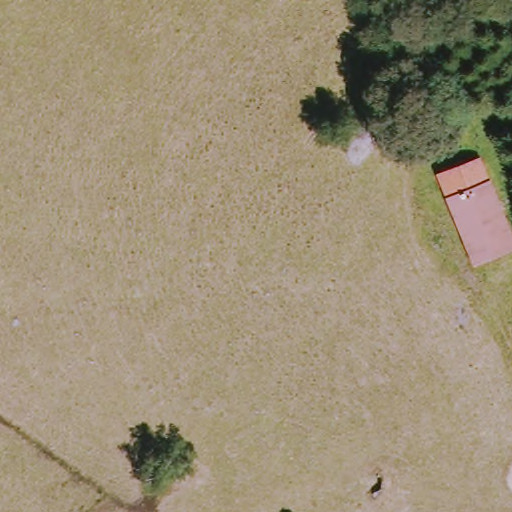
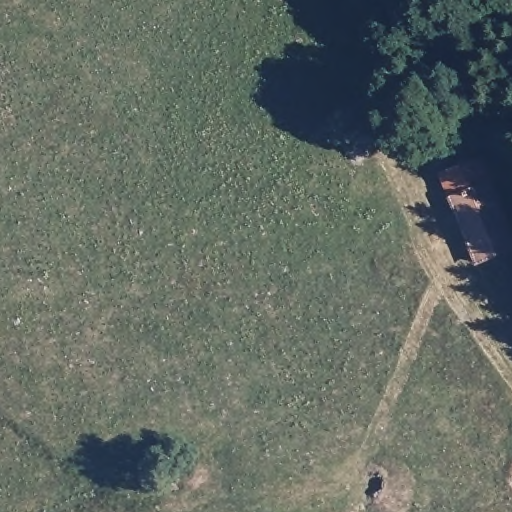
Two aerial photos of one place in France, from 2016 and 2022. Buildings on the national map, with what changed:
unchanged [(437,174),(481,158),(491,181),(512,232),(512,254),(477,268),(448,199),(437,174)]

